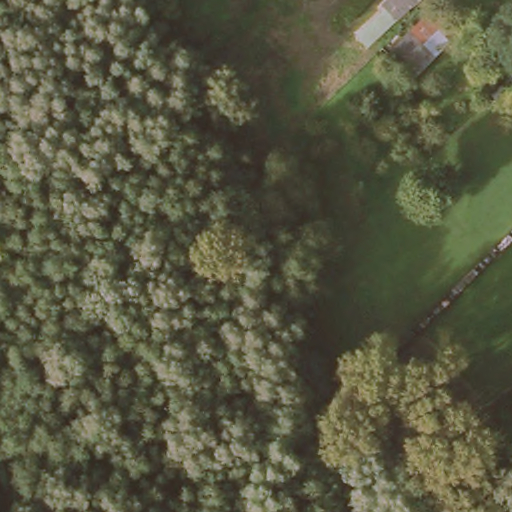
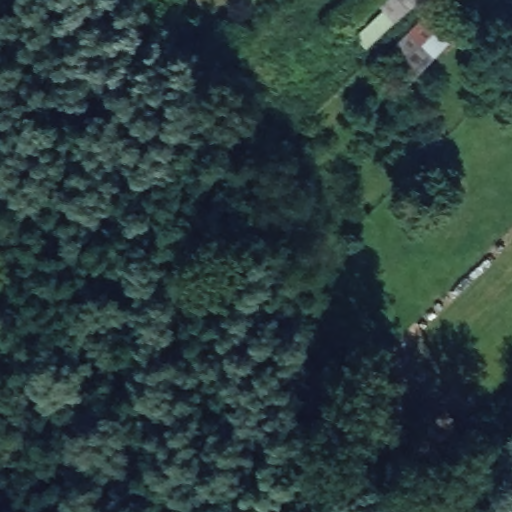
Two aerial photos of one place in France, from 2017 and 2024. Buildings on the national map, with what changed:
unchanged [(392,0),(419,0),(371,46),(358,34),(392,0)]

